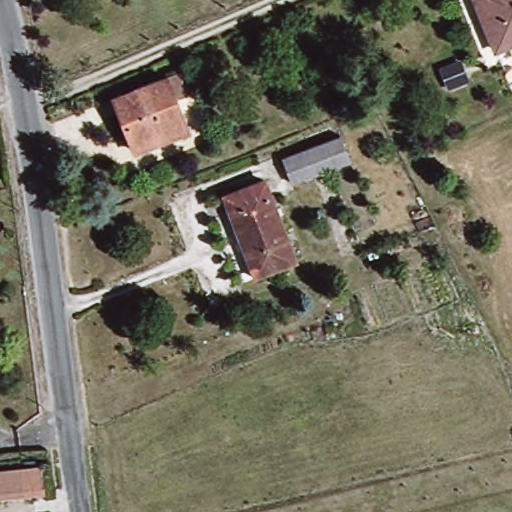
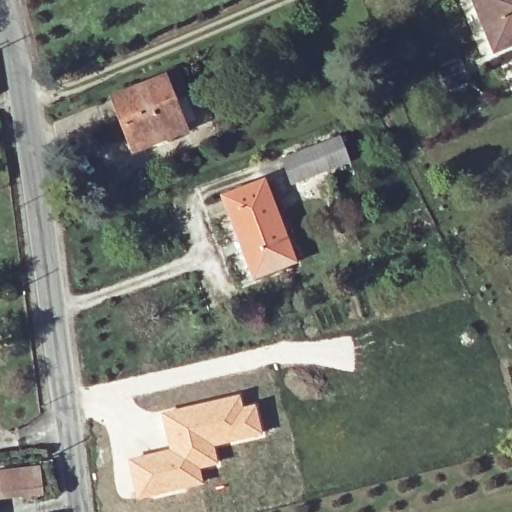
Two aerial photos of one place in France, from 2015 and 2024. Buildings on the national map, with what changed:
unchanged [(481,7),(498,0),(512,0),(512,59),(505,62),(481,7)]
unchanged [(137,148),(120,103),(169,84),(180,80),(189,104),(177,108),(186,129),(137,148)]
unchanged [(297,181),(288,159),(342,139),(350,161),(297,181)]
unchanged [(256,274),(225,196),(266,181),(297,258),(256,274)]
new [(169,448),(160,413),(240,394),(244,406),(256,403),(263,434),(215,446),(219,464),(200,469),(204,483),(137,499),(126,458),(169,448)]
unchanged [(4,505),(0,488),(0,476),(33,472),(38,499),(4,505)]

